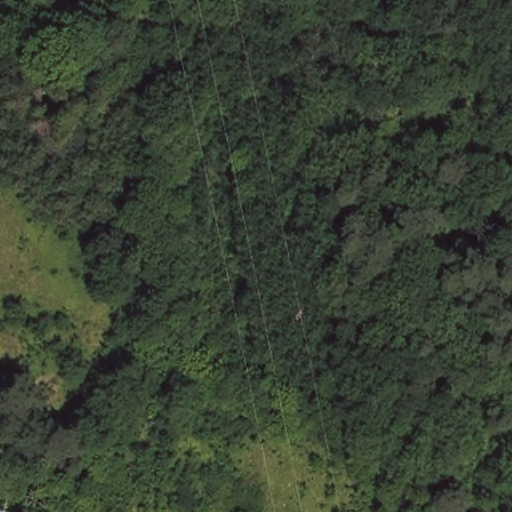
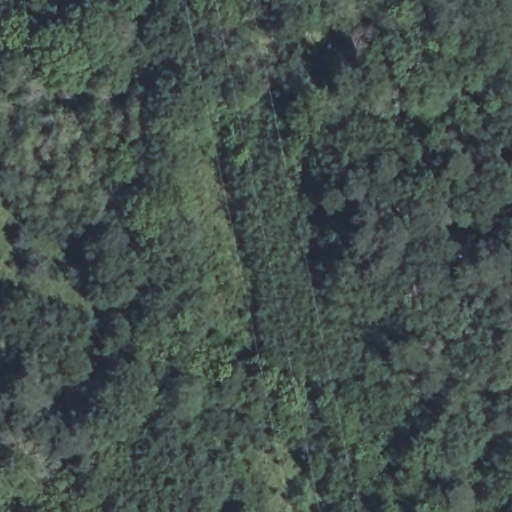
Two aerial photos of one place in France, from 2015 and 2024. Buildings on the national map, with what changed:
unchanged [(251,0),(267,0),(266,6),(251,0)]

